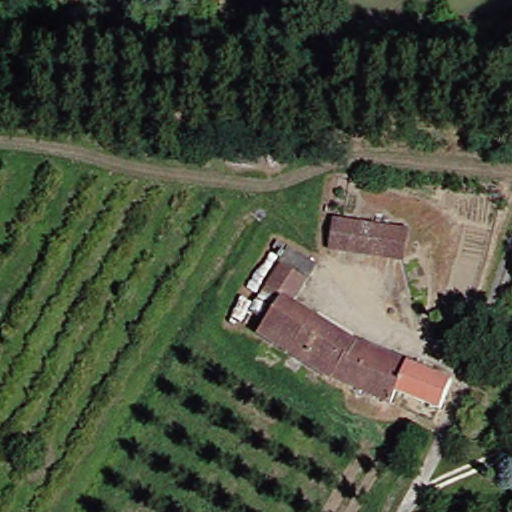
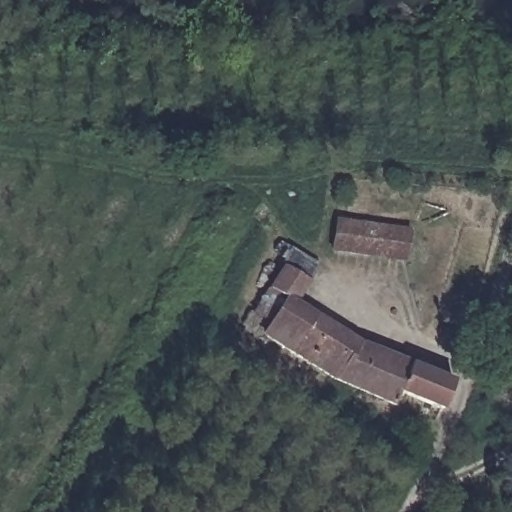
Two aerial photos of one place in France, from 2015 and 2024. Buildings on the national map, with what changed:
unchanged [(391,233),(387,262),(340,256),(344,228),(391,233)]
unchanged [(343,342),(444,380),(432,410),(391,395),(386,408),(314,381),(250,341),(256,330),(240,319),(256,294),(269,273),(264,270),(267,266),(277,252),(309,270),(305,276),(286,306),(343,342)]

